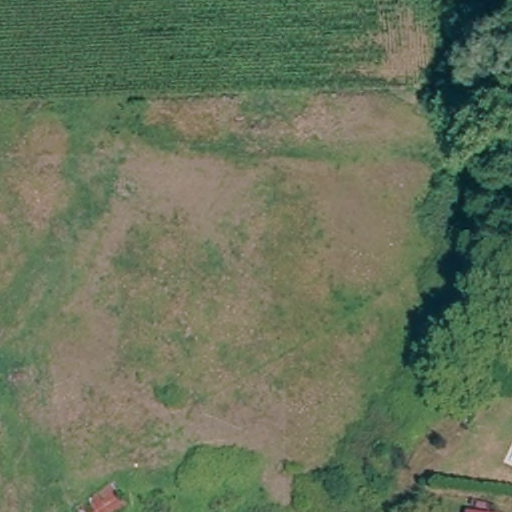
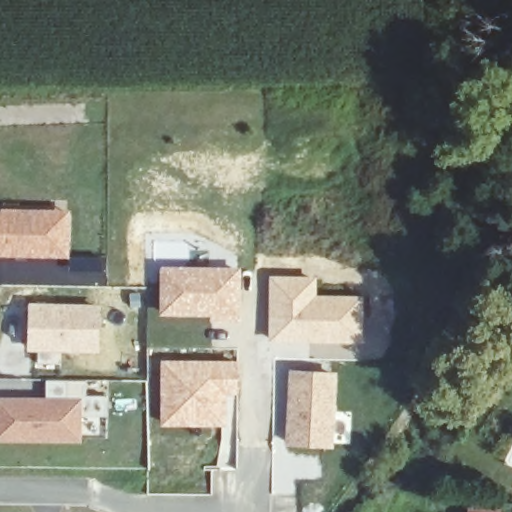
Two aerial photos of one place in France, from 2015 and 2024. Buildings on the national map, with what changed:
new [(1,209),(70,211),(70,260),(0,258),(0,213),(1,213),(1,209)]
new [(159,266),(242,267),(240,320),(158,317),(159,266)]
new [(268,275),(316,276),(316,294),(363,295),(362,345),(268,342),(268,275)]
new [(96,350),(30,348),(31,306),(98,308),(96,350)]
new [(160,359),(239,360),(238,395),(227,395),(225,427),(159,426),(160,359)]
new [(288,369),(338,372),(334,449),(284,446),(288,369)]
new [(0,438),(0,401),(79,401),(79,439),(0,438)]
demolished [(104,476),(121,500),(104,512),(72,512),(67,504),(104,476)]

